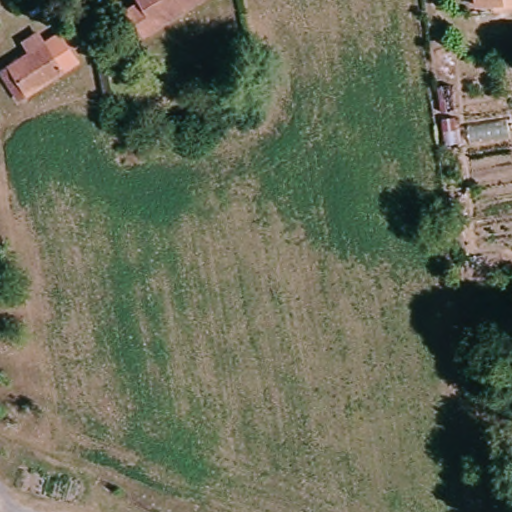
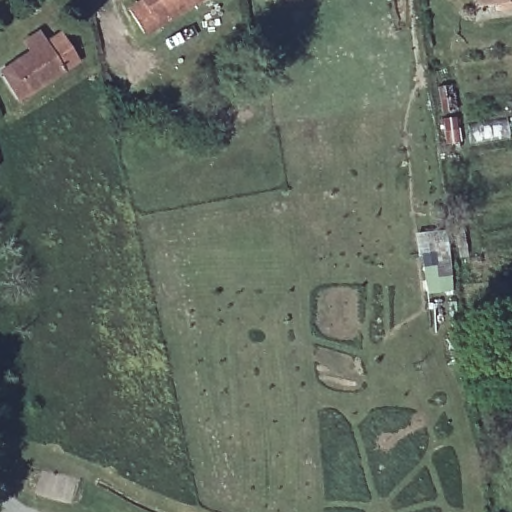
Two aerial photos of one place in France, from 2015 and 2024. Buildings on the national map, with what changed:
unchanged [(139,14),(152,5),(149,0),(206,0),(152,36),(139,14)]
unchanged [(473,8),(473,0),(512,0),(512,3),(473,8)]
unchanged [(0,74),(39,49),(51,41),(66,66),(54,72),(11,100),(0,84),(0,74)]

